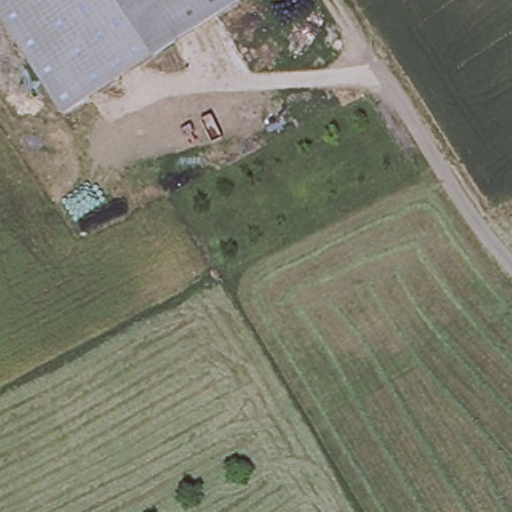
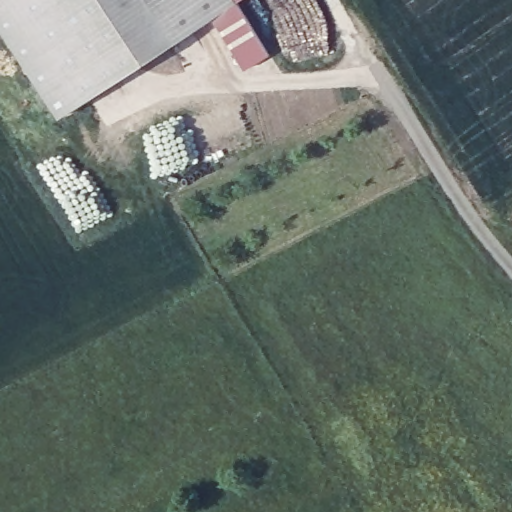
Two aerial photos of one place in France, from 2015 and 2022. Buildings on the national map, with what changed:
unchanged [(148,0),(178,45),(58,117),(0,26),(0,0),(148,0)]
unchanged [(148,0),(238,0),(178,45),(148,0)]
new [(270,52),(245,68),(215,17),(238,0),(241,0),(240,1),(270,52)]

